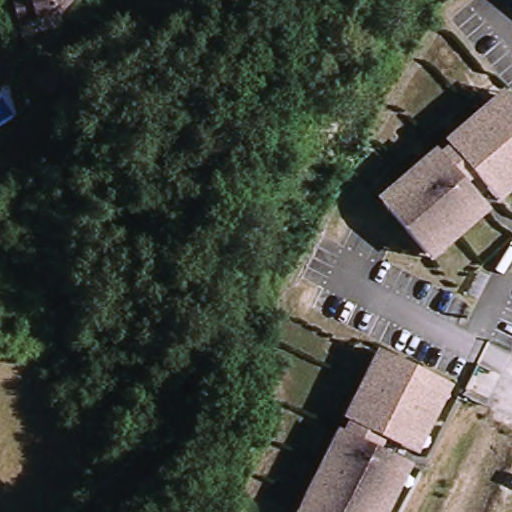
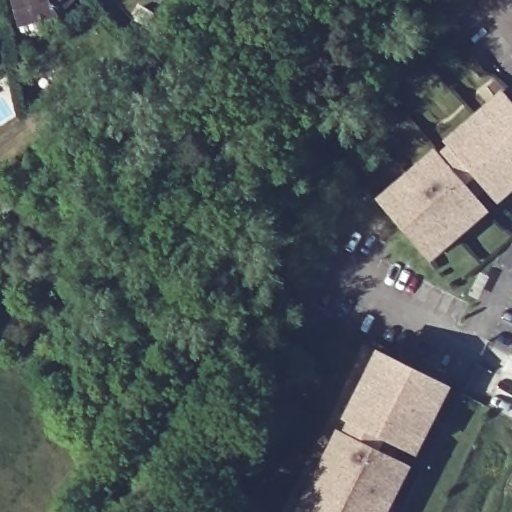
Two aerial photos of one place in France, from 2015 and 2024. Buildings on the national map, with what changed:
unchanged [(65,16),(24,25),(20,0),(82,0),(65,16)]
unchanged [(392,186),(414,168),(433,152),(436,158),(448,149),(444,144),(462,129),(483,110),(499,95),(503,100),(512,110),(512,189),(494,204),(490,199),(471,176),(460,185),(479,208),(483,213),(466,228),(444,248),(427,262),(423,256),(380,206),(375,200),(392,186)]
unchanged [(314,480),(328,454),(339,431),(344,435),(351,422),(345,420),(355,398),(369,371),(379,353),(384,356),(444,386),(449,388),(439,408),(426,435),(415,456),(409,453),(383,439),(377,451),(403,465),(409,468),(398,488),(386,512),(297,512),(304,499),(314,480)]

